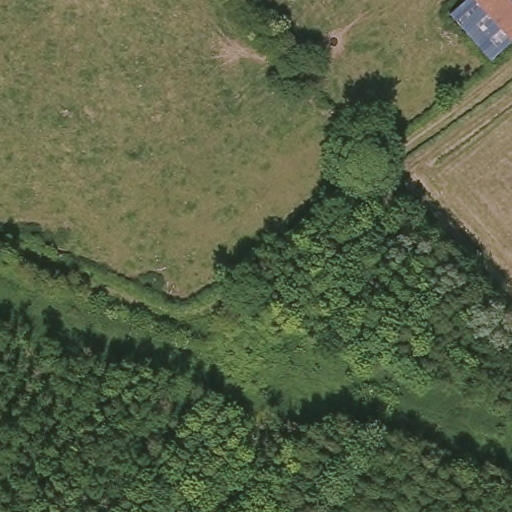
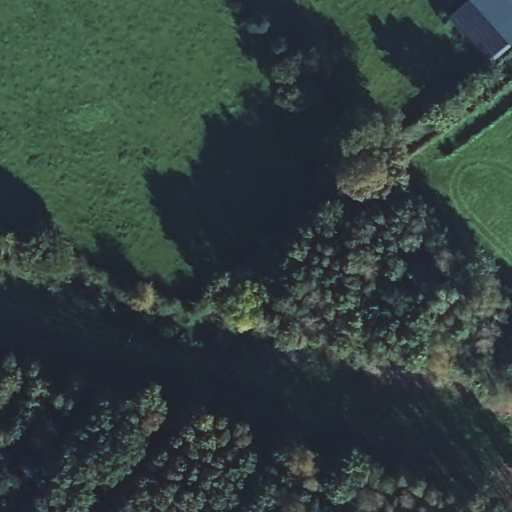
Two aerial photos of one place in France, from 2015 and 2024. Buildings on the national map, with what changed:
unchanged [(464,0),(498,0),(512,15),(512,37),(484,64),(444,19),(464,0)]

